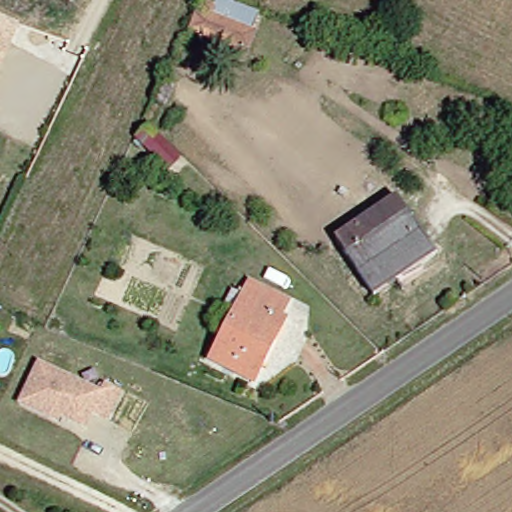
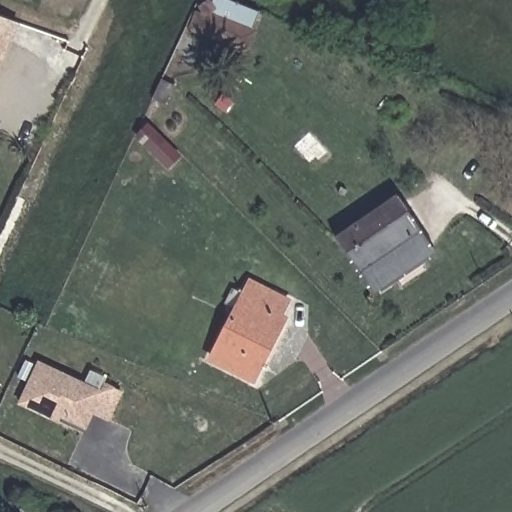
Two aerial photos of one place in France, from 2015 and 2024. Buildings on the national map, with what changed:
unchanged [(183,24),(190,6),(193,6),(190,1),(193,0),(234,0),(248,5),(234,44),(183,24)]
unchanged [(21,19),(0,65),(0,11),(21,19)]
unchanged [(155,92),(162,79),(175,85),(166,104),(152,97),(155,92)]
unchanged [(179,156),(169,166),(137,135),(147,125),(179,156)]
unchanged [(415,236),(427,254),(364,295),(352,278),(324,237),(387,195),(415,236)]
unchanged [(240,280),(278,300),(271,315),(275,316),(243,380),(200,358),(240,280)]
unchanged [(69,419),(60,415),(58,420),(50,416),(20,402),(39,361),(101,391),(105,383),(121,391),(108,418),(93,411),(86,427),(69,419)]

